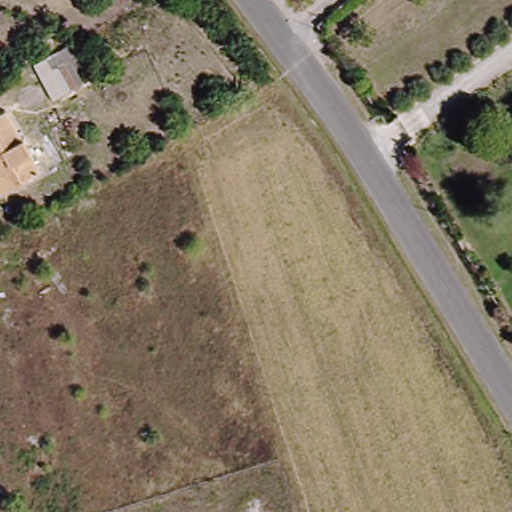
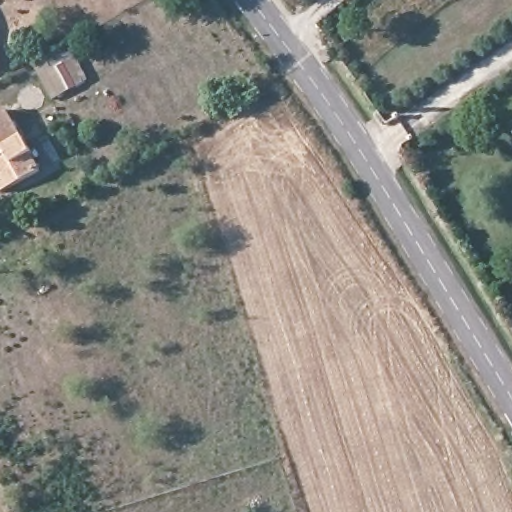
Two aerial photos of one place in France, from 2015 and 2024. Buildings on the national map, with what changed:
unchanged [(35,63),(72,45),(91,84),(53,101),(35,63)]
unchanged [(0,188),(0,111),(7,107),(22,135),(29,130),(39,150),(30,156),(40,172),(14,185),(2,191),(0,188)]

